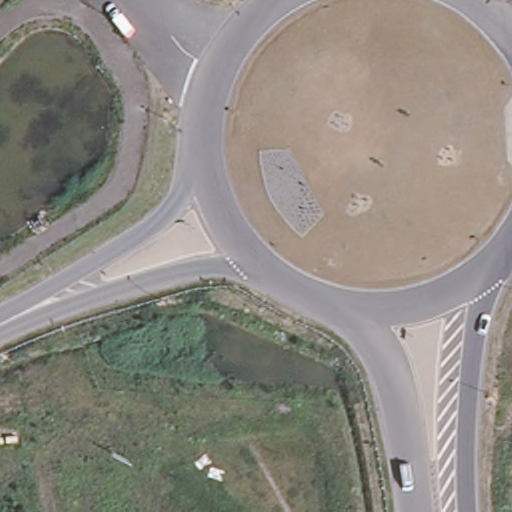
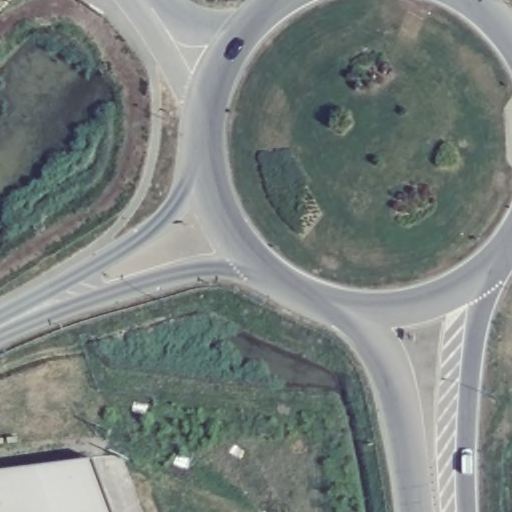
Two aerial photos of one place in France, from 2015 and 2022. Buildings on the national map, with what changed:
new [(90,458),(109,512),(0,512),(0,470),(90,458)]

